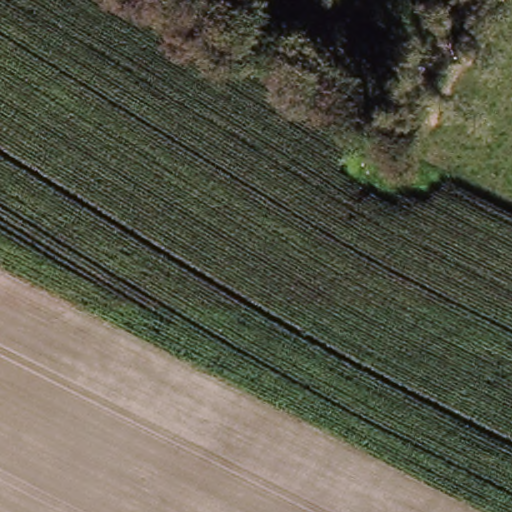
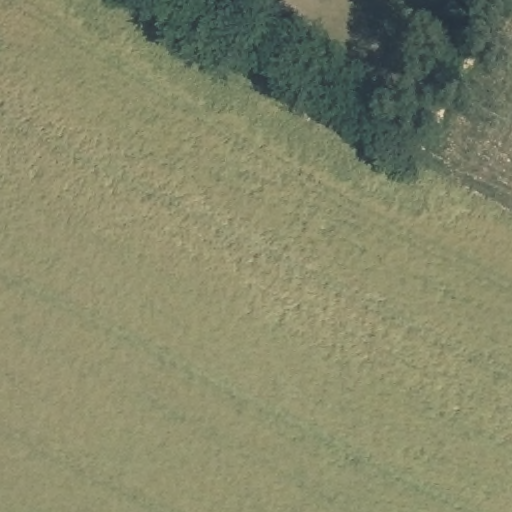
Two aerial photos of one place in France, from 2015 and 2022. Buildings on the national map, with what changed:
unchanged [(295,68),(307,48),(336,64),(324,85),(295,68)]

